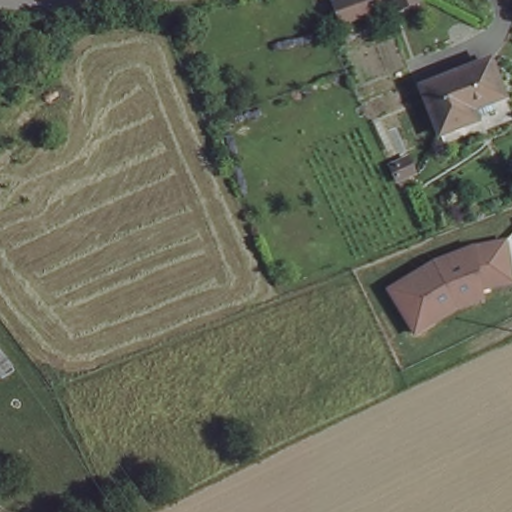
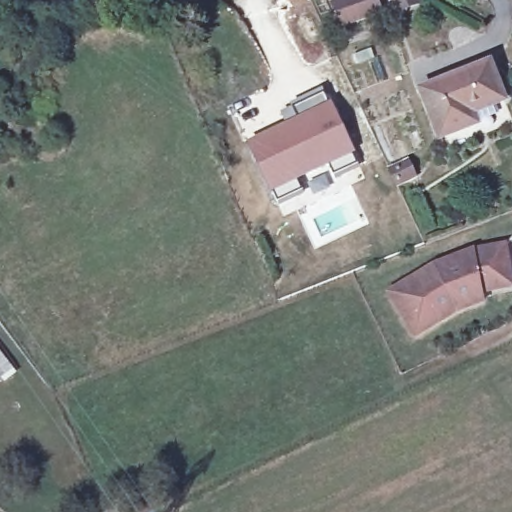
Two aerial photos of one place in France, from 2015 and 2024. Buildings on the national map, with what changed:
unchanged [(338,26),(331,12),(354,0),(374,0),(378,7),(338,26)]
unchanged [(394,0),(420,0),(399,10),(394,0)]
unchanged [(504,103),(475,116),(482,130),(444,145),(420,92),(487,64),(504,103)]
new [(335,176),(331,165),(297,180),(302,190),(279,202),(275,192),(271,194),(247,144),(298,119),(293,109),(324,95),(328,105),(332,104),(355,154),(352,155),(356,164),(335,176)]
unchanged [(487,304),(417,337),(390,292),(442,257),(507,241),(512,270),(512,288),(485,293),(487,304)]
unchanged [(17,369),(0,383),(0,344),(17,369)]

